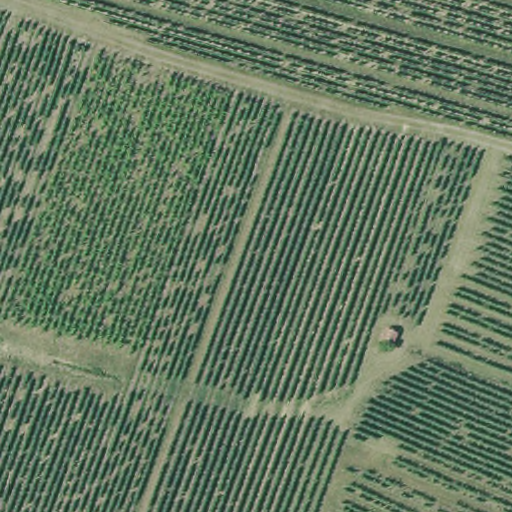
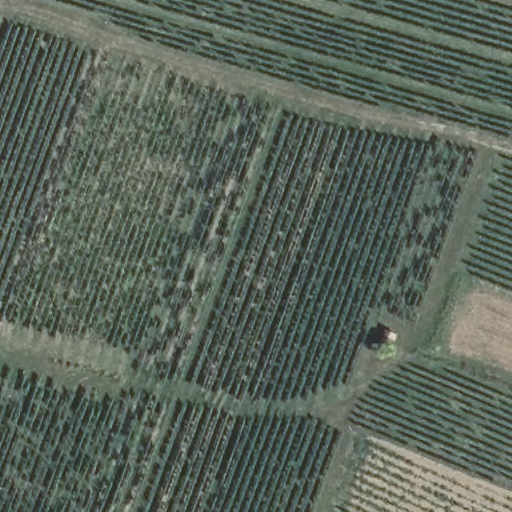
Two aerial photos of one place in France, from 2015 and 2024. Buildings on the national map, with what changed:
unchanged [(388,347),(376,341),(380,331),(392,335),(388,347)]

